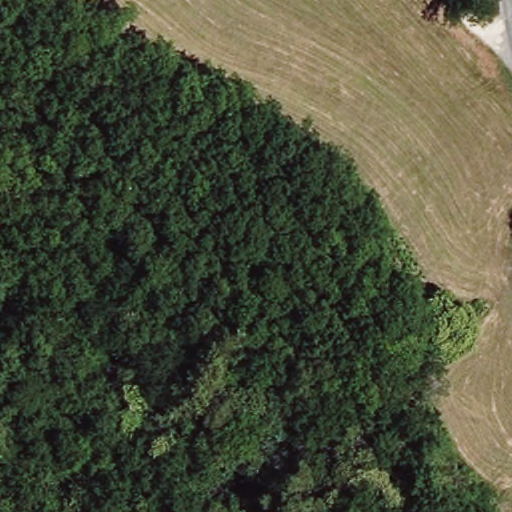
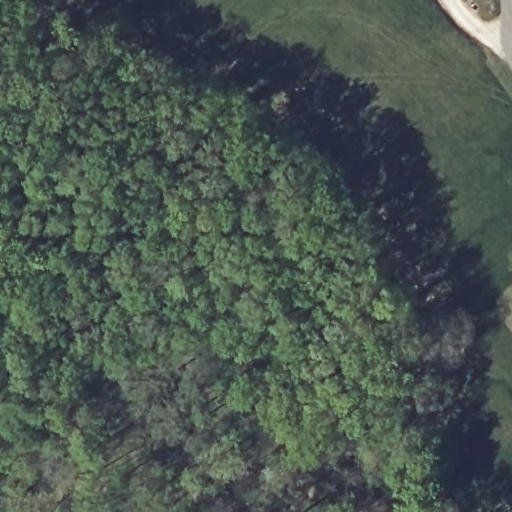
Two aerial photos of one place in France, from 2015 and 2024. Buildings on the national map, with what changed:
[]

